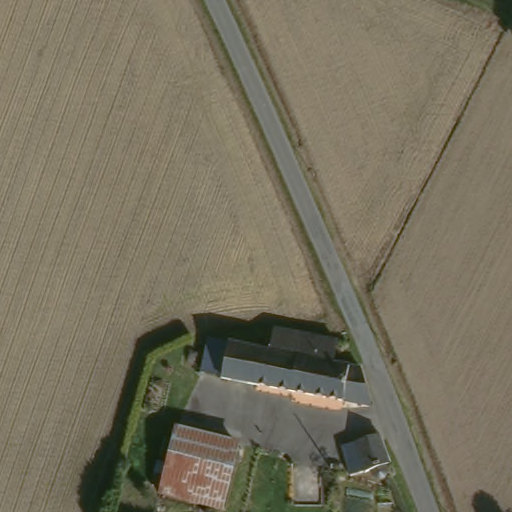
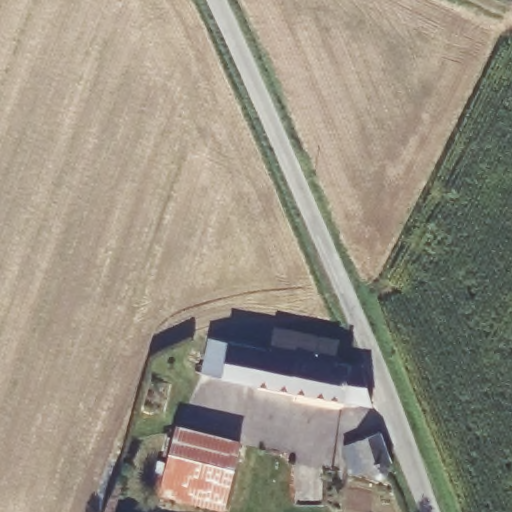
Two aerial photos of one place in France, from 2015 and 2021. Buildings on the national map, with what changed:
unchanged [(207,338),(228,341),(272,349),(279,323),(341,335),(338,362),(367,368),(371,404),(342,396),(201,368),(207,338)]
unchanged [(355,468),(351,469),(342,444),(356,439),(382,429),(394,465),(392,475),(388,478),(384,477),(379,468),(369,472),(358,475),(355,468)]
unchanged [(240,447),(225,508),(161,493),(176,432),(240,447)]

